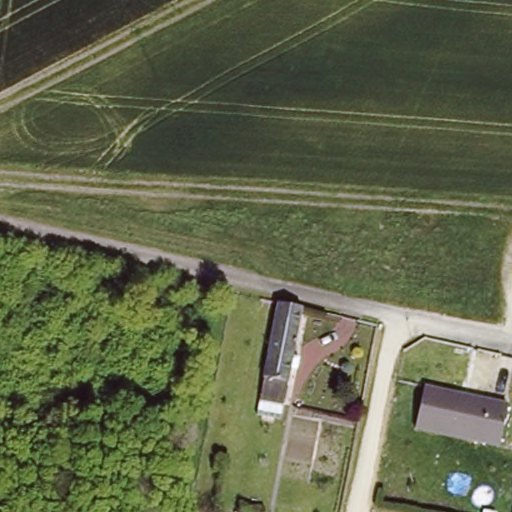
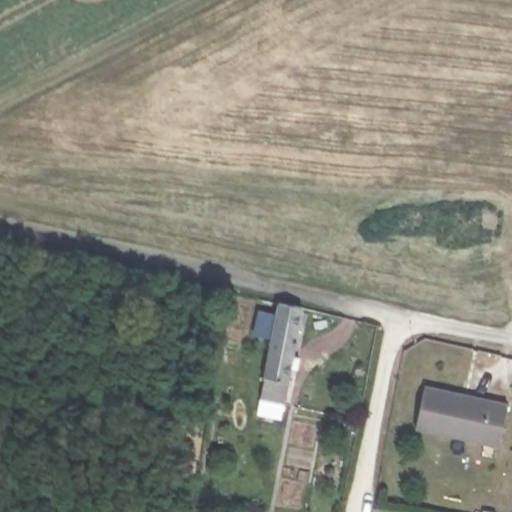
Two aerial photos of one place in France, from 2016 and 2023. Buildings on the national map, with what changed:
unchanged [(278,419),(255,415),(260,394),(285,304),(308,309),(284,395),(283,398),(278,419)]
unchanged [(508,403),(499,447),(416,429),(425,385),(508,403)]
unchanged [(512,473),(512,506),(505,505),(511,473),(512,473)]

